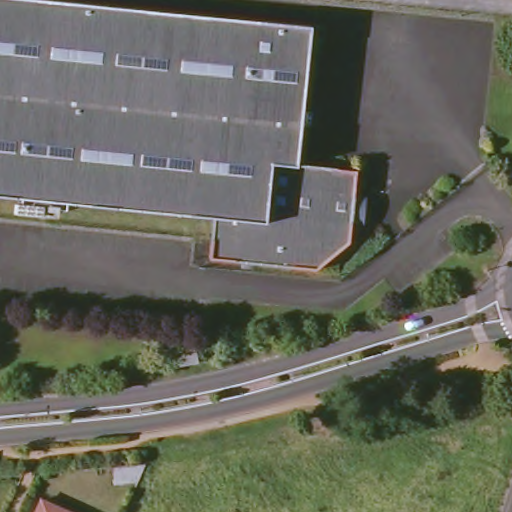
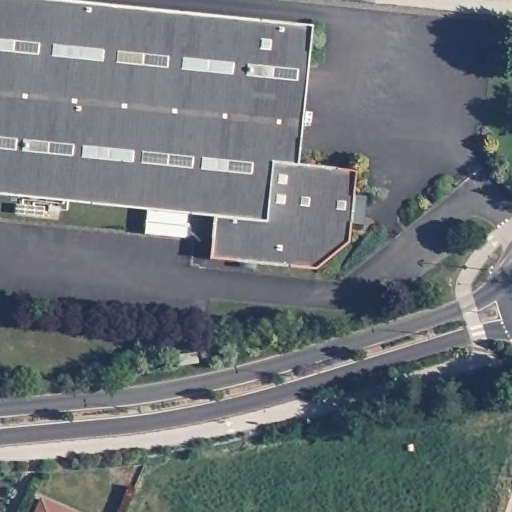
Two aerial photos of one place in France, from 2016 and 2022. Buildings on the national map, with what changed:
unchanged [(312,18),(299,159),(355,164),(349,236),(316,263),(209,253),(213,211),(0,190),(0,0),(130,0),(312,18)]
unchanged [(73,512),(35,512),(42,498),(73,512)]

